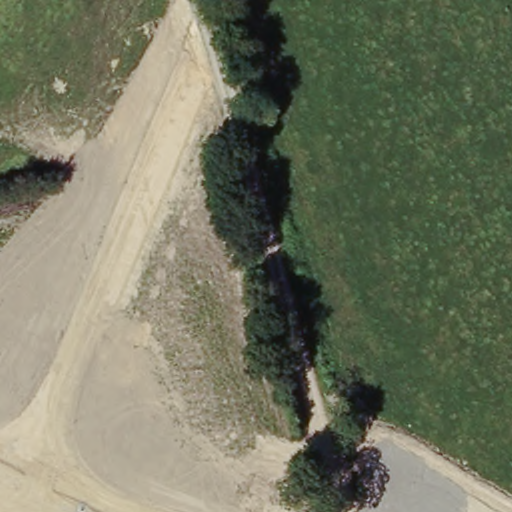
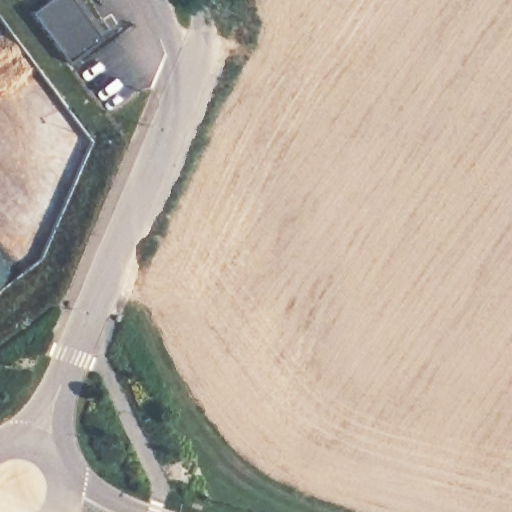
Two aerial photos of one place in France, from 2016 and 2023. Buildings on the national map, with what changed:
new [(28,13),(46,0),(69,0),(98,38),(65,62),(28,13)]

